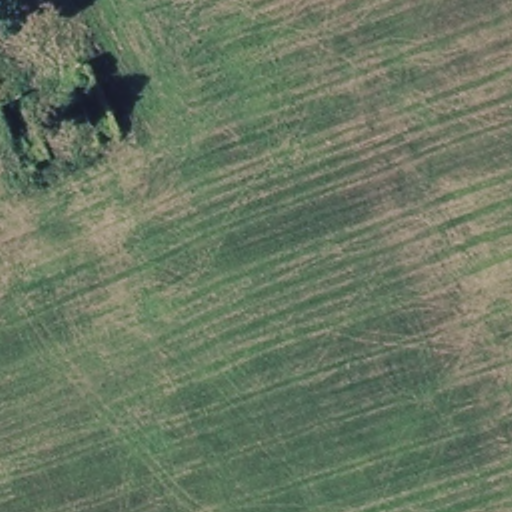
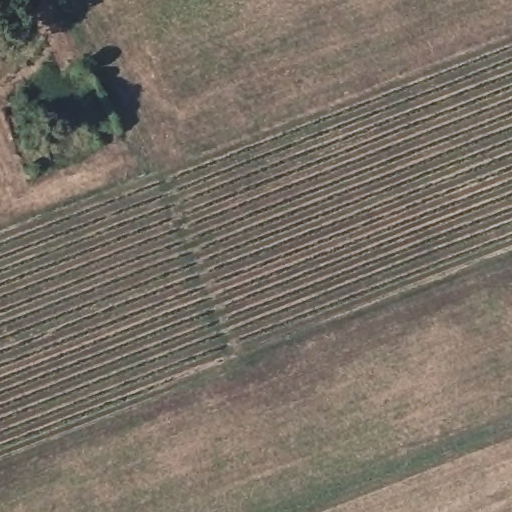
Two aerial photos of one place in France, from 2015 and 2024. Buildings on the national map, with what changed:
unchanged [(92,65),(114,114),(92,123),(70,74),(92,65)]

